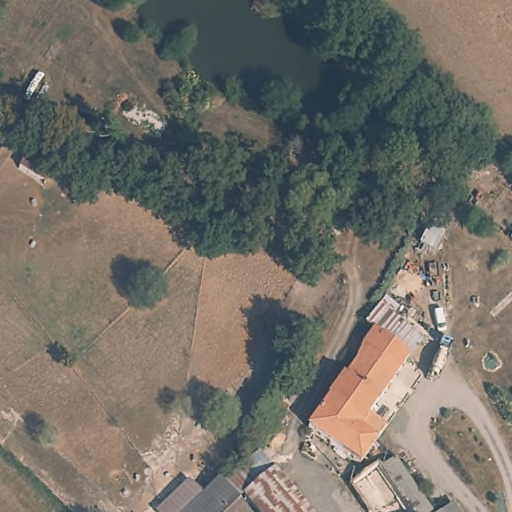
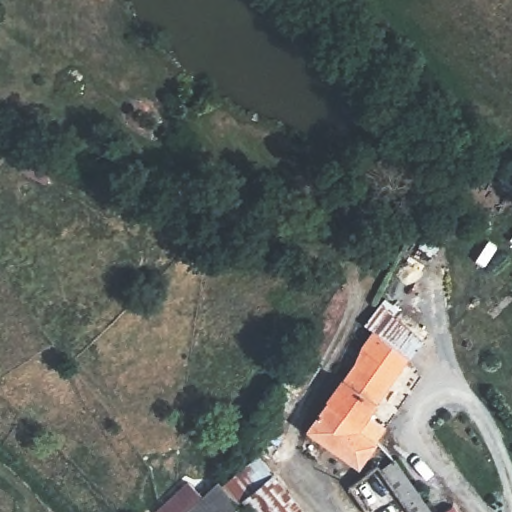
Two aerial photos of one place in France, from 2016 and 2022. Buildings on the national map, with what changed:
unchanged [(369,324),(411,351),(405,360),(359,433),(317,405),(364,331),(366,329),(366,328),(369,324)]
unchanged [(310,381),(286,413),(276,409),(251,431),(242,421),(292,365),(310,381)]
unchanged [(359,433),(355,438),(372,449),(361,464),(302,426),(317,405),(359,433)]
unchanged [(377,454),(390,469),(429,512),(383,512),(352,476),(377,454)]
unchanged [(404,457),(451,512),(429,512),(390,469),(404,457)]
unchanged [(253,512),(232,488),(261,462),(306,512),(253,512)]
unchanged [(211,474),(246,512),(167,512),(164,509),(183,487),(193,496),(211,474)]

